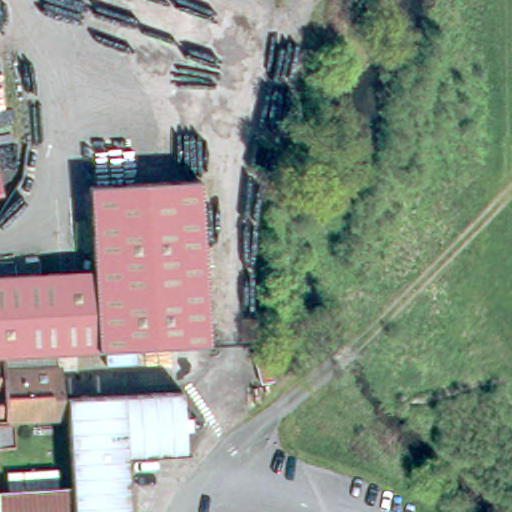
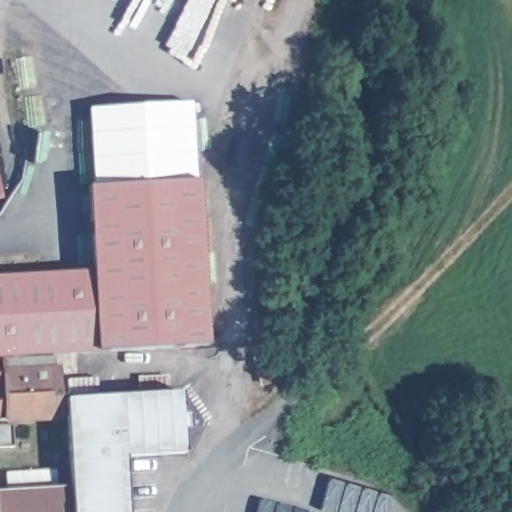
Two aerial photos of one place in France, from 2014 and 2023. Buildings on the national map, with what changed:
new [(192,101),(192,181),(193,190),(96,195),(90,195),(90,106),(192,101)]
unchanged [(100,270),(96,195),(212,189),(215,352),(70,360),(70,405),(192,399),(195,459),(133,462),(134,512),(0,512),(0,274),(100,270)]

